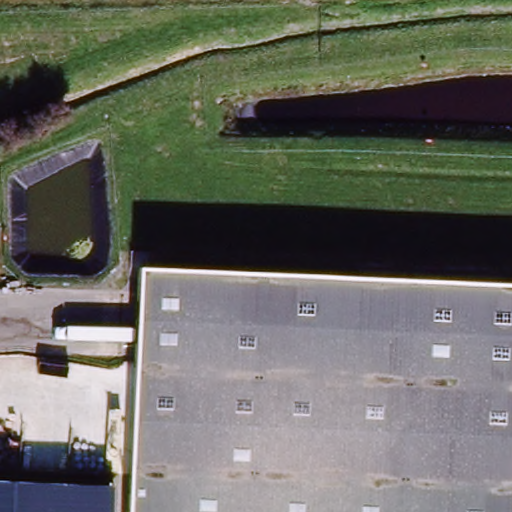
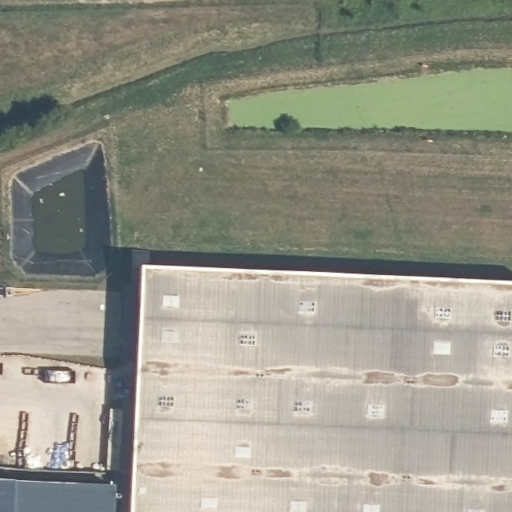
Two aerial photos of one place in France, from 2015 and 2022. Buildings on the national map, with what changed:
unchanged [(512,512),(126,512),(136,272),(512,291),(512,512)]
unchanged [(114,495),(113,512),(0,512),(0,489),(114,495)]

